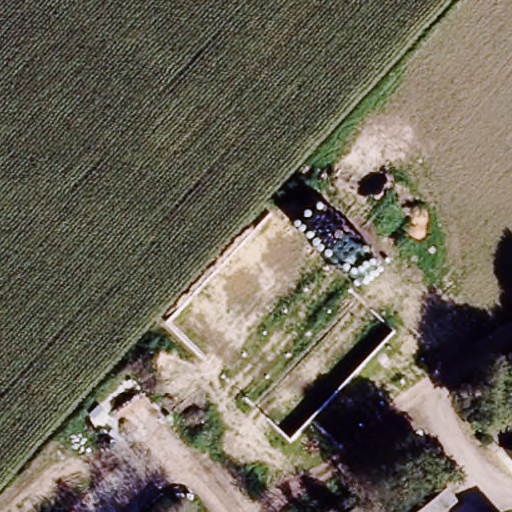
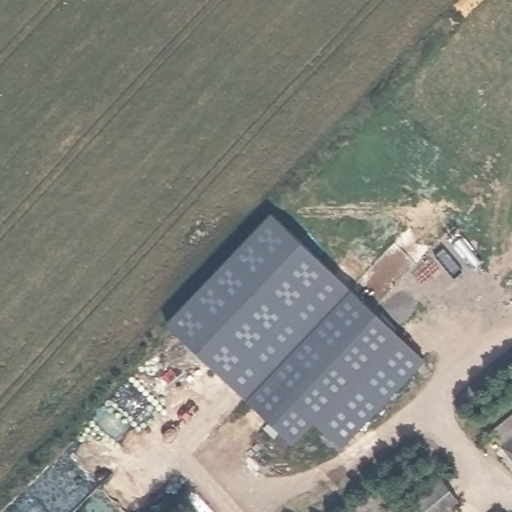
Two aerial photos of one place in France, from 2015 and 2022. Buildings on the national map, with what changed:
new [(290,442),(164,322),(270,212),(396,332),(312,421),(290,442)]
new [(425,360),(340,448),(312,421),(396,332),(425,360)]
unchanged [(512,458),(503,450),(491,436),(512,417),(512,458)]
unchanged [(453,498),(436,512),(394,512),(435,478),(453,498)]
unchanged [(394,512),(352,512),(376,491),(394,512)]

